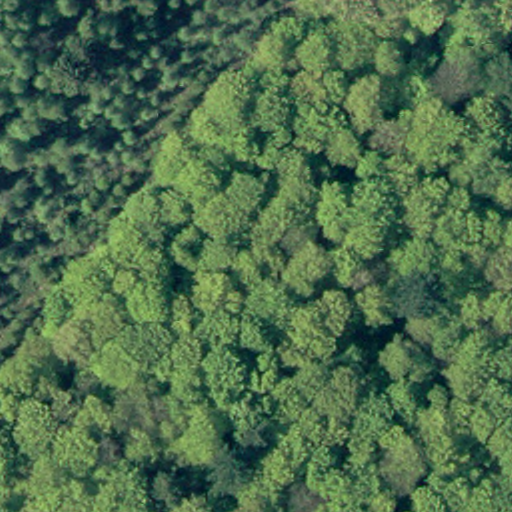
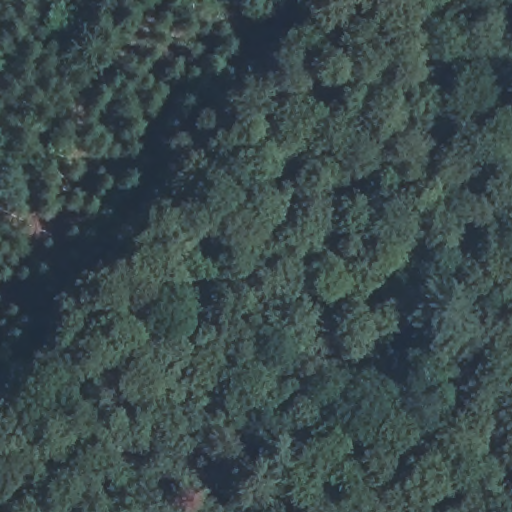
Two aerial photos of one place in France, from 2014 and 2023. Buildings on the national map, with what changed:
[]

